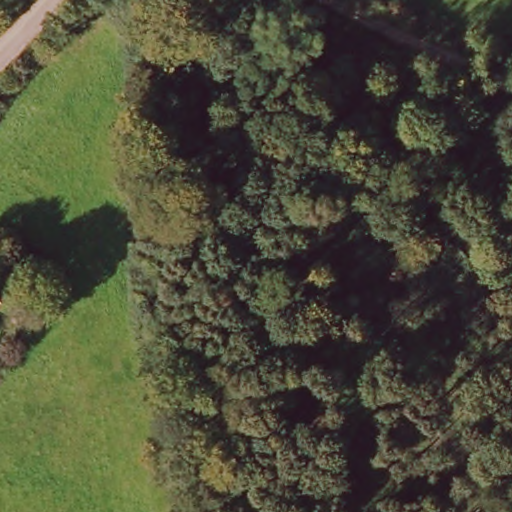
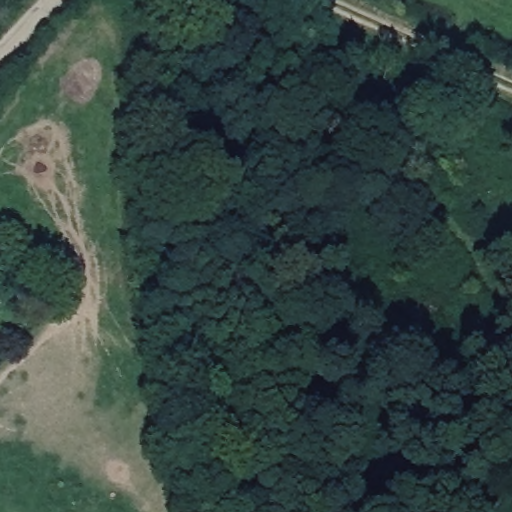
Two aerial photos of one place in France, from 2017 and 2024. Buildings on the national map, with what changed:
[]

